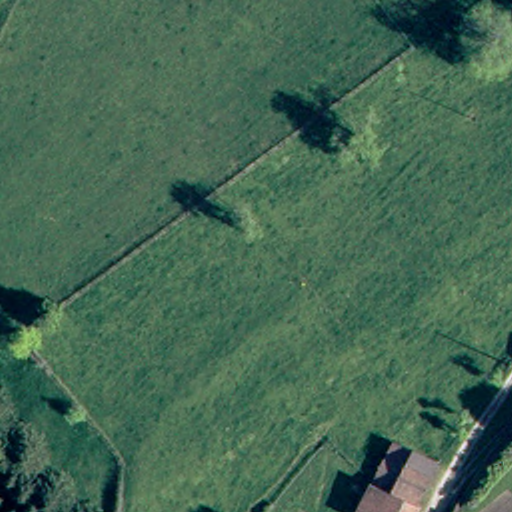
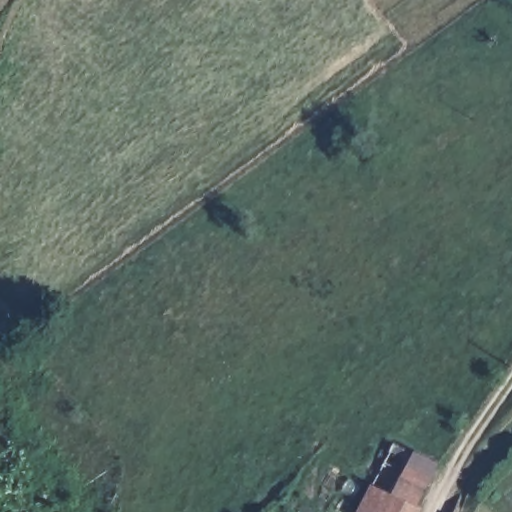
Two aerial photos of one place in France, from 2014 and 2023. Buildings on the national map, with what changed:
unchanged [(404,481),(414,464),(435,475),(416,512),(387,512),(368,503),(384,468),(404,481)]

